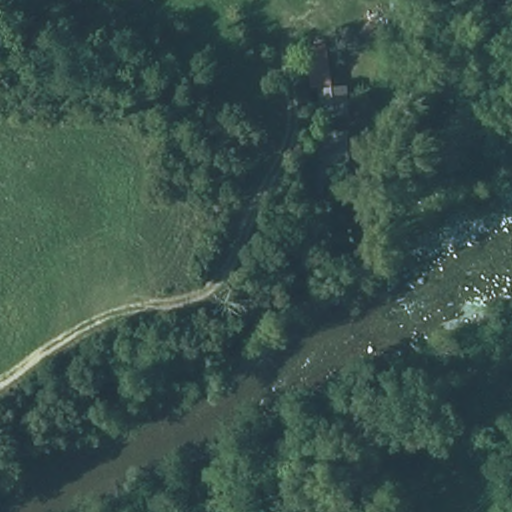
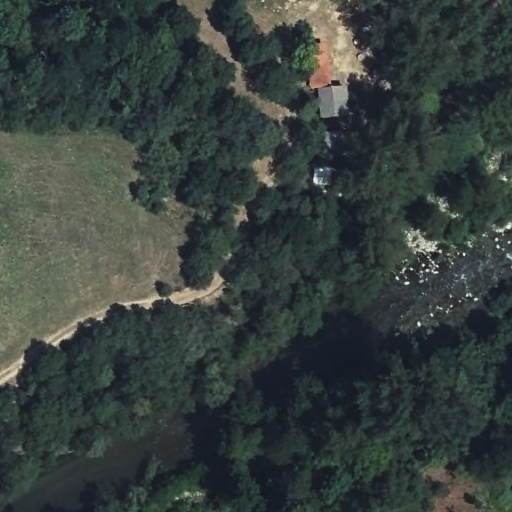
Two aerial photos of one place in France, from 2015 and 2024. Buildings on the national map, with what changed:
unchanged [(326,45),(330,46),(332,86),(348,87),(352,167),(323,168),(317,90),(308,90),(305,46),(326,45)]

